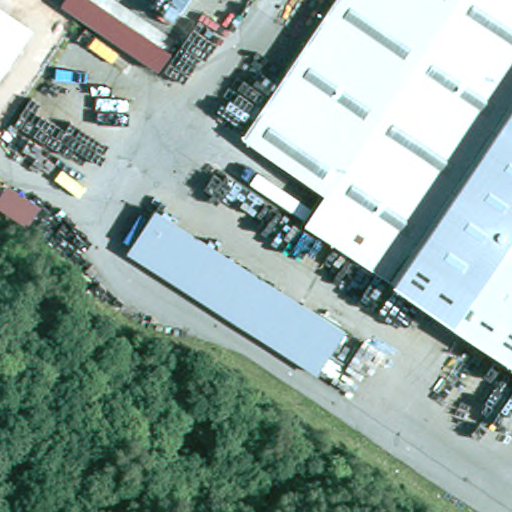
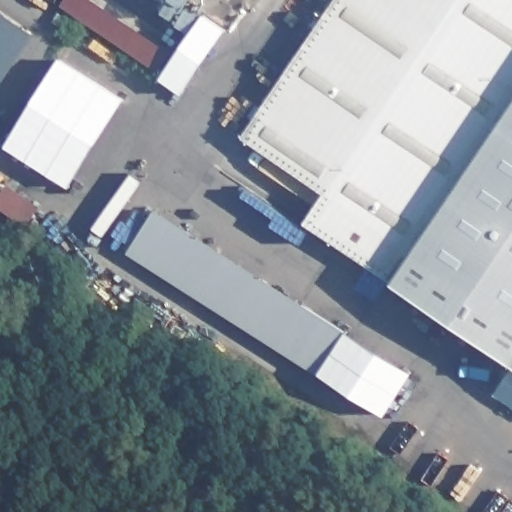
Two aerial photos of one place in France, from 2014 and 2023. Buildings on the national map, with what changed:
demolished [(84,25),(79,21),(48,0),(101,0),(84,25)]
new [(169,50),(156,70),(56,5),(60,0),(93,0),(169,50)]
unchanged [(325,192),(243,137),(336,0),(512,0),(512,363),(305,222),(325,192)]
new [(36,32),(0,86),(0,8),(36,32)]
new [(124,97),(70,186),(7,146),(61,56),(124,97)]
unchanged [(128,251),(156,209),(347,331),(319,375),(128,251)]
new [(412,372),(384,416),(319,375),(347,331),(412,372)]

